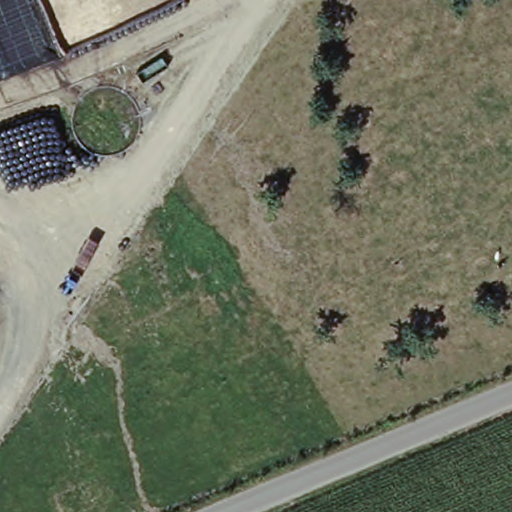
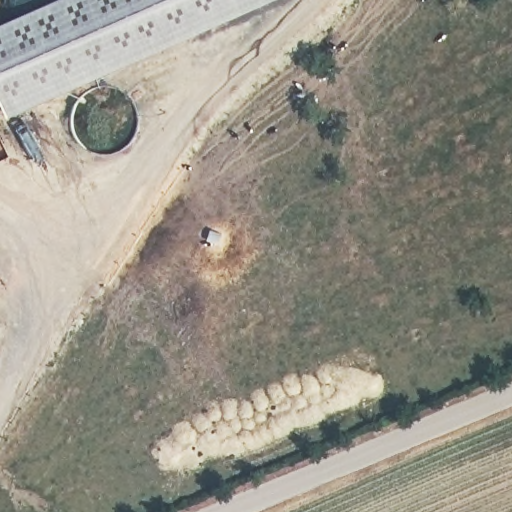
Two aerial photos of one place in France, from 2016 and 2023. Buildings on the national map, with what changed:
new [(13,119),(0,89),(0,28),(63,0),(273,0),(13,119)]
demolished [(32,162),(29,149),(47,144),(51,157),(32,162)]

